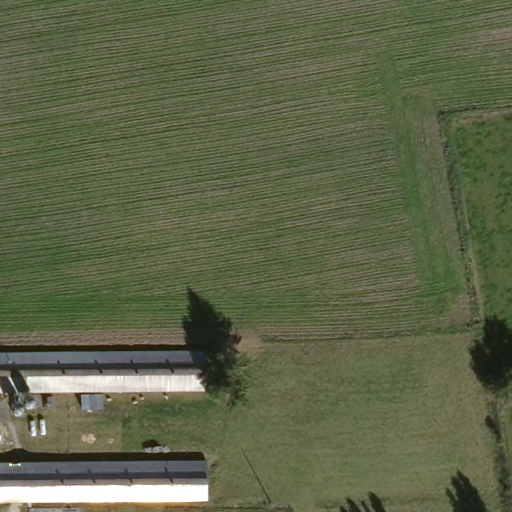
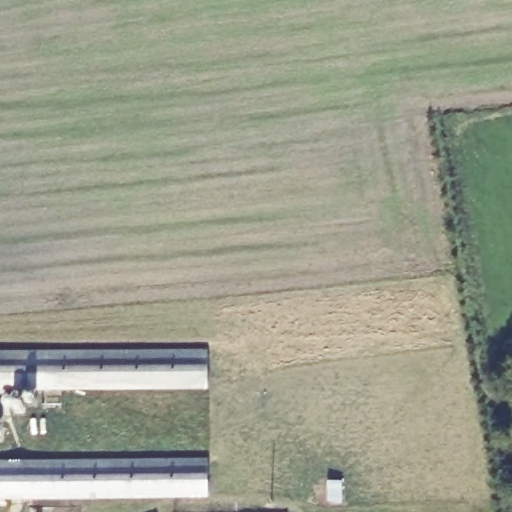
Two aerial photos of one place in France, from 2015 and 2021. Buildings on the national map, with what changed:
unchanged [(0,352),(214,350),(212,383),(0,386),(0,352)]
unchanged [(0,465),(220,463),(221,496),(0,500),(0,465)]

